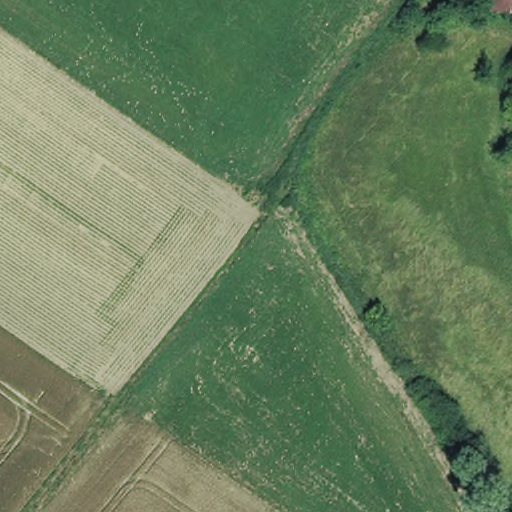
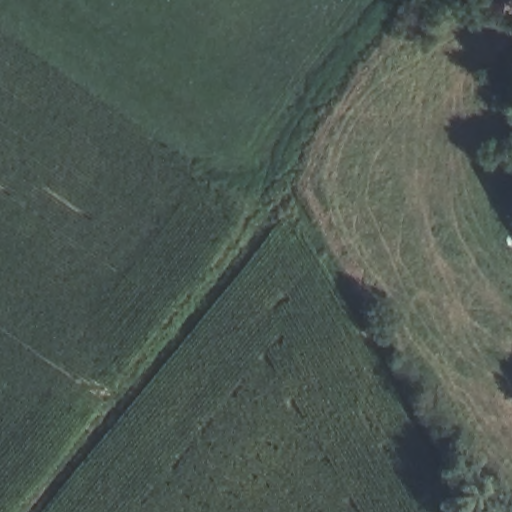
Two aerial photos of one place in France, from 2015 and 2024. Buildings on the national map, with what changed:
unchanged [(483,10),(484,0),(512,0),(512,11),(483,10)]

